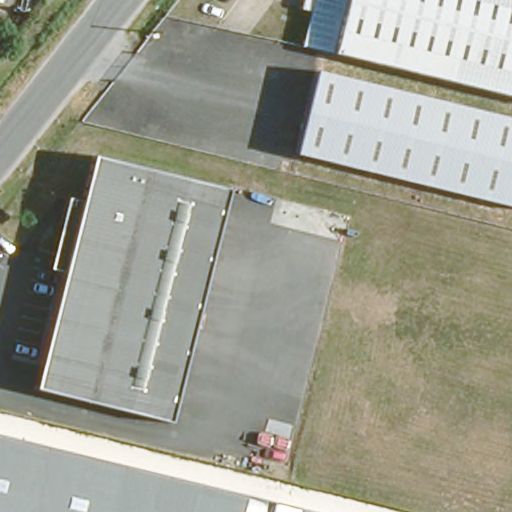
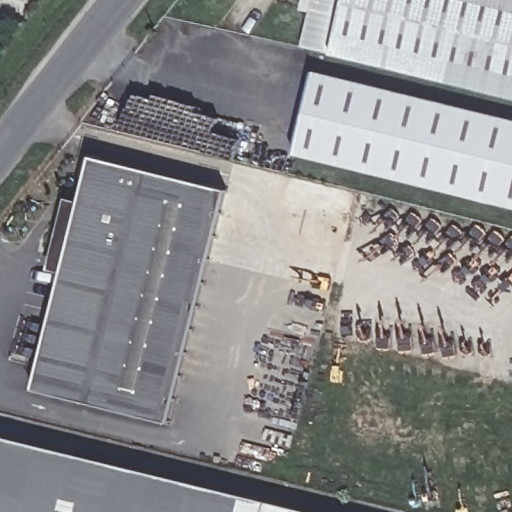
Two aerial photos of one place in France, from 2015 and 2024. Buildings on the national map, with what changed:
unchanged [(305,9),(292,5),(294,0),(512,0),(512,96),(378,62),(298,41),(305,9)]
unchanged [(316,72),(512,121),(512,207),(296,153),(316,72)]
unchanged [(228,189),(217,232),(170,421),(35,387),(87,171),(92,155),(228,189)]
unchanged [(313,512),(0,512),(0,436),(313,512)]

